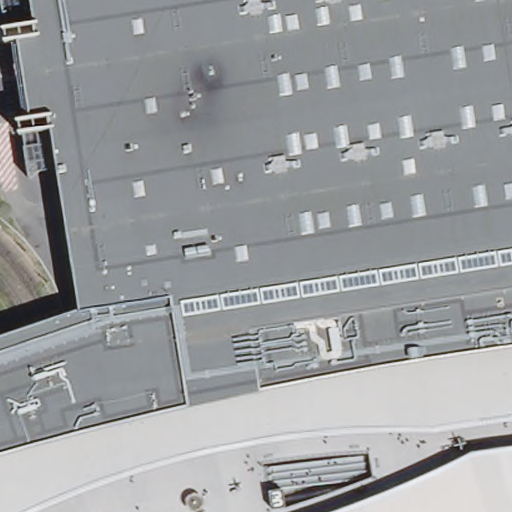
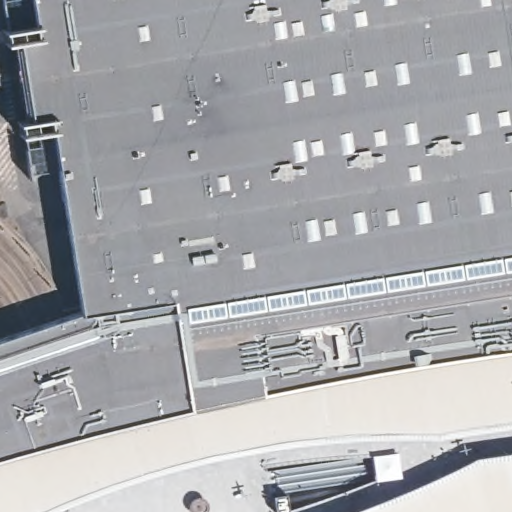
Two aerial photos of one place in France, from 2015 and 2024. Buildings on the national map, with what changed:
unchanged [(58,171),(34,174),(26,137),(19,139),(16,119),(31,114),(20,41),(6,43),(4,27),(36,20),(33,0),(512,0),(512,512),(0,512),(0,338),(81,312),(58,171)]

